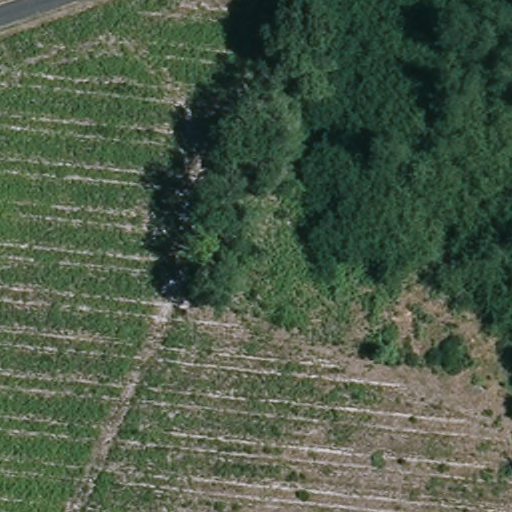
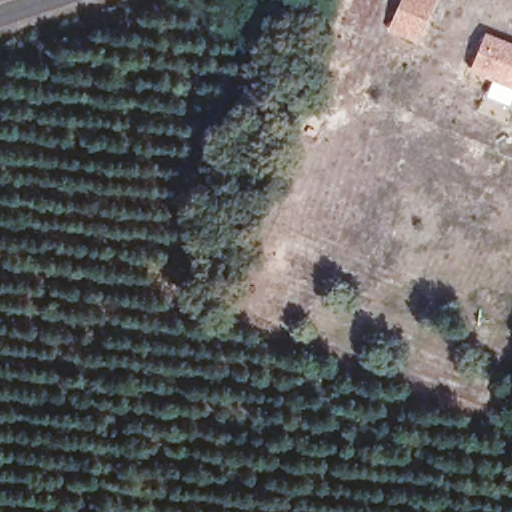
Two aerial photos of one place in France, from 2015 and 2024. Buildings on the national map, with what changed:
new [(399,0),(434,0),(416,42),(386,29),(399,0)]
new [(470,70),(485,33),(512,44),(512,87),(470,70)]

